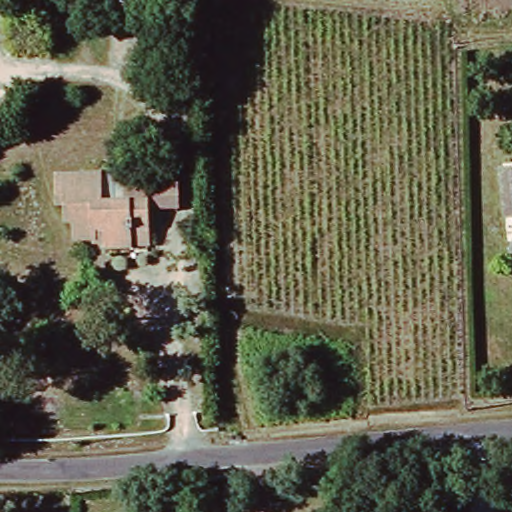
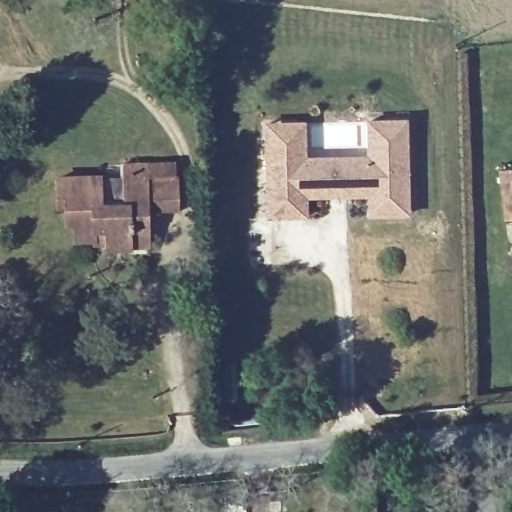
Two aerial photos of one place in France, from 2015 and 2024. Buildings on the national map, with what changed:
new [(266,123),(304,120),(305,156),(368,154),(367,121),(406,120),(407,214),(370,215),(369,194),(346,194),(346,190),(327,191),(327,196),(305,196),(306,215),(268,216),(266,123)]
unchanged [(126,246),(101,245),(103,232),(77,232),(76,217),(68,216),(68,202),(58,201),(59,172),(101,172),(100,200),(123,201),(125,176),(178,174),(179,205),(147,205),(149,229),(149,245),(126,246)]
new [(512,246),(512,255),(509,254),(512,246)]

